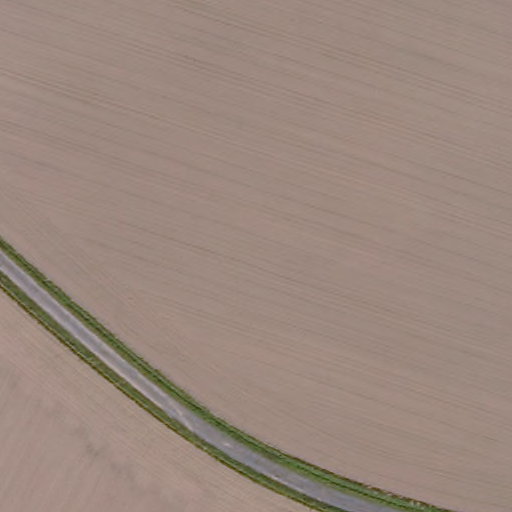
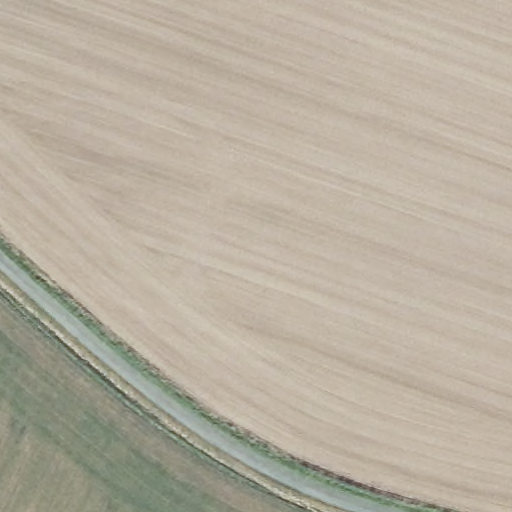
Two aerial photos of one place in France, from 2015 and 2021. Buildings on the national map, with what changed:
[]

